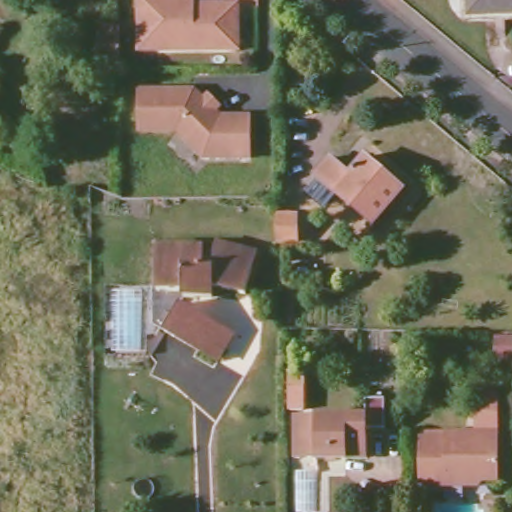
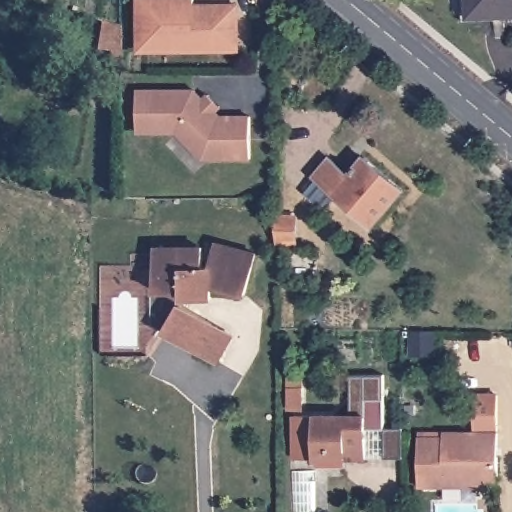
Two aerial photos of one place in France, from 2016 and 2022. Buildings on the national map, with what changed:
unchanged [(192,14),(200,14),(200,7),(235,8),(235,52),(137,52),(138,0),(192,0),(192,14)]
unchanged [(470,14),(470,0),(512,0),(512,15),(505,16),(505,12),(470,14)]
unchanged [(252,117),(252,160),(203,160),(176,134),(137,135),(136,92),(193,91),(203,100),(208,94),(220,106),(215,111),(222,117),(252,117)]
unchanged [(331,161),(350,177),(365,159),(402,191),(373,225),(316,177),(331,161)]
unchanged [(298,217),(297,242),(279,242),(278,217),(298,217)]
unchanged [(158,286),(158,242),(202,243),(202,265),(212,265),(218,240),(255,251),(246,291),(212,282),(212,292),(186,292),(186,286),(158,286)]
unchanged [(167,332),(182,307),(234,337),(220,363),(167,332)]
unchanged [(512,335),(512,358),(505,358),(506,335),(512,335)]
unchanged [(295,406),(295,382),(307,383),(306,407),(295,406)]
unchanged [(476,432),(475,395),(498,395),(499,432),(499,482),(484,481),(479,485),(464,485),(461,482),(446,481),(445,486),(420,485),(421,437),(445,437),(445,432),(476,432)]
unchanged [(298,455),(299,412),(367,412),(368,398),(388,398),(387,427),(367,427),(366,435),(370,435),(369,457),(348,456),(320,456),(298,455)]

